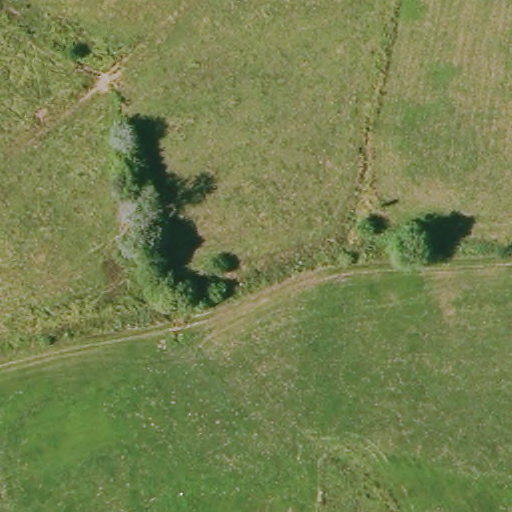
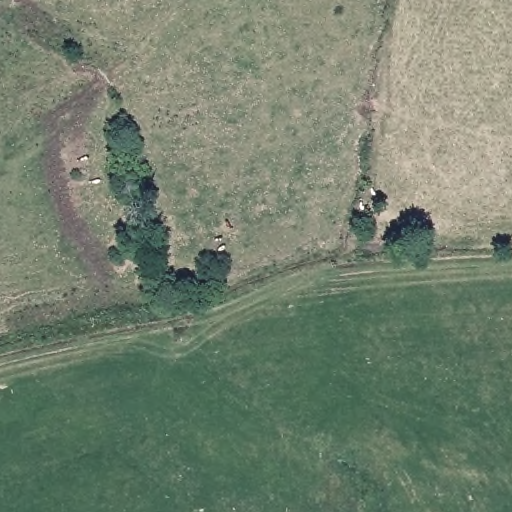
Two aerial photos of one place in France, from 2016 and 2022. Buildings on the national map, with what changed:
[]

